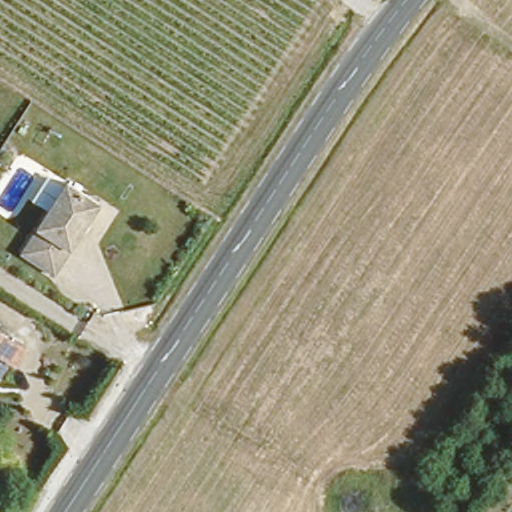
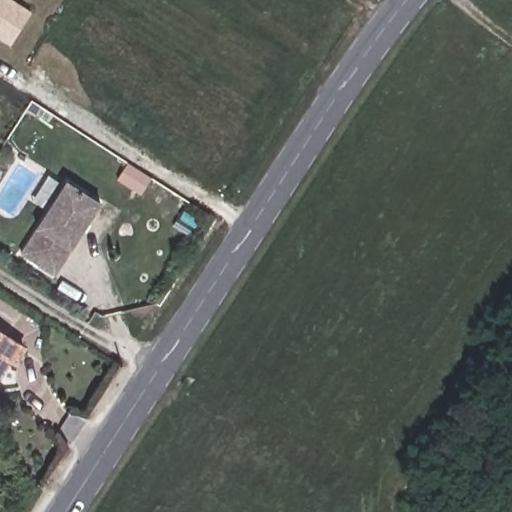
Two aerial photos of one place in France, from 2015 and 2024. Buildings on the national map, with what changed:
new [(32,12),(10,46),(0,40),(0,0),(13,0),(32,12)]
unchanged [(102,202),(55,274),(20,252),(65,178),(102,202)]
unchanged [(11,343),(1,356),(6,359),(0,369),(0,337),(11,343)]

